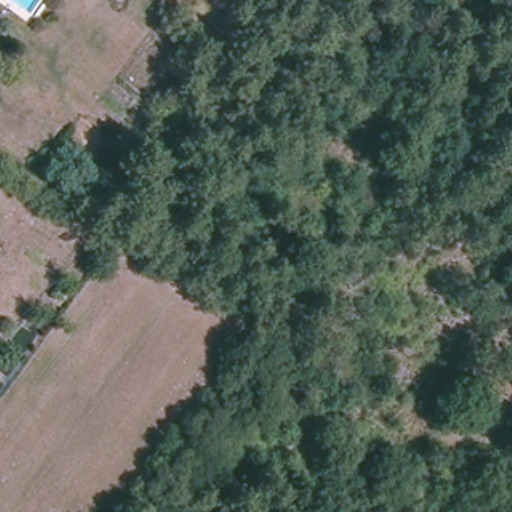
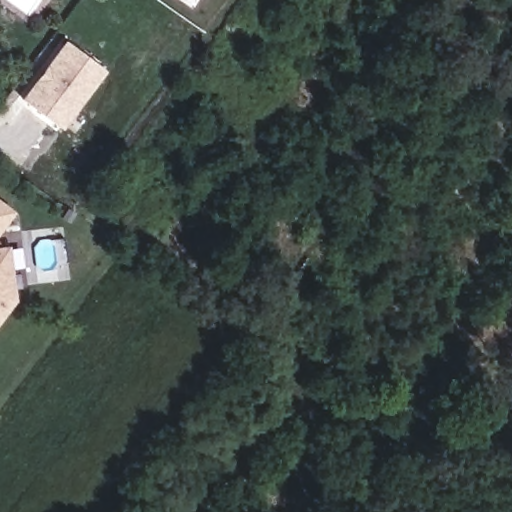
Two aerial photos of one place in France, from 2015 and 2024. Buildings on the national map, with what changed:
new [(67,124),(57,116),(53,121),(21,97),(65,40),(105,70),(67,124)]
new [(15,211),(0,232),(0,199),(15,211)]
new [(8,244),(16,300),(0,322),(0,245),(8,244)]

